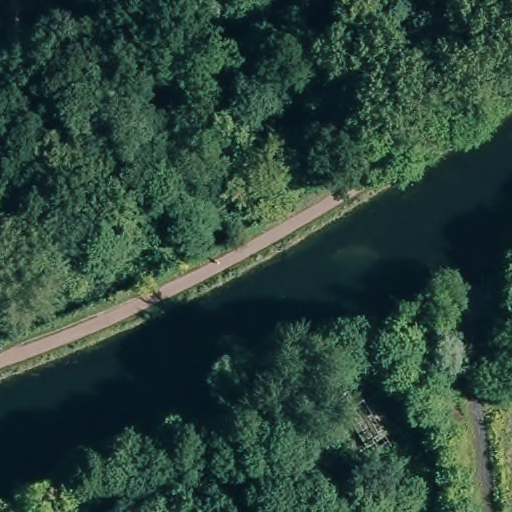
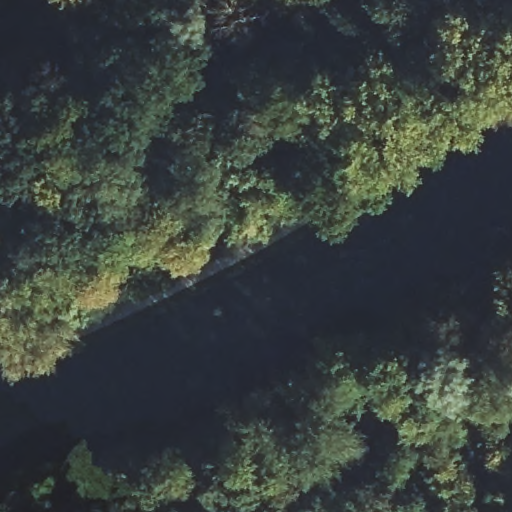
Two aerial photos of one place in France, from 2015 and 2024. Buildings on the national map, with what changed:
unchanged [(392,428),(364,444),(345,410),(372,393),(392,428)]

